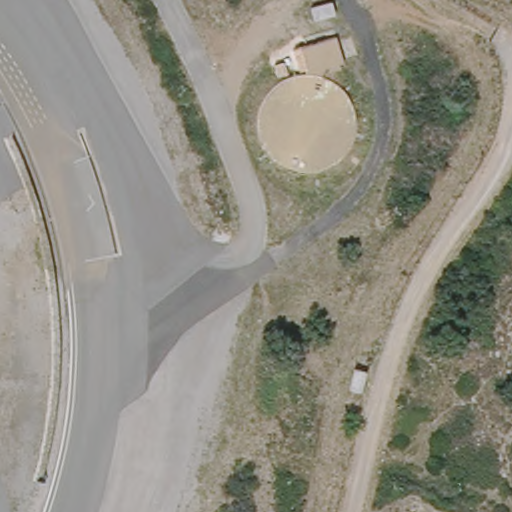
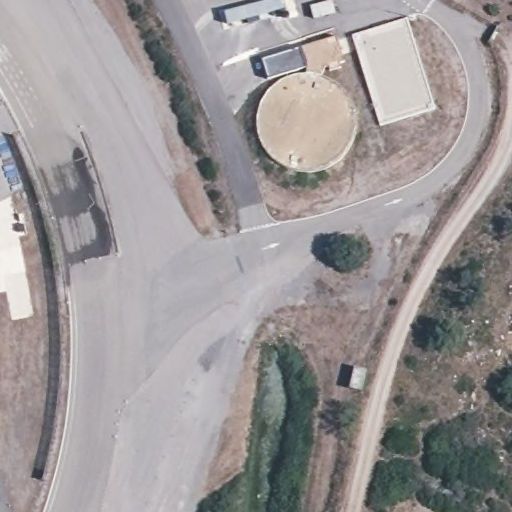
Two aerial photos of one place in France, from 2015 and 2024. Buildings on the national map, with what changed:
new [(408,19),(436,109),(381,128),(353,35),(408,19)]
unchanged [(311,75),(305,75),(305,62),(301,46),(335,35),(343,60),(340,62),(340,66),(328,69),(327,65),(323,67),(319,77),(311,75)]

